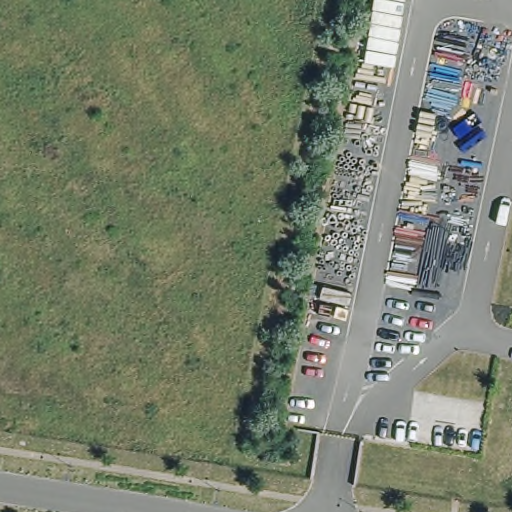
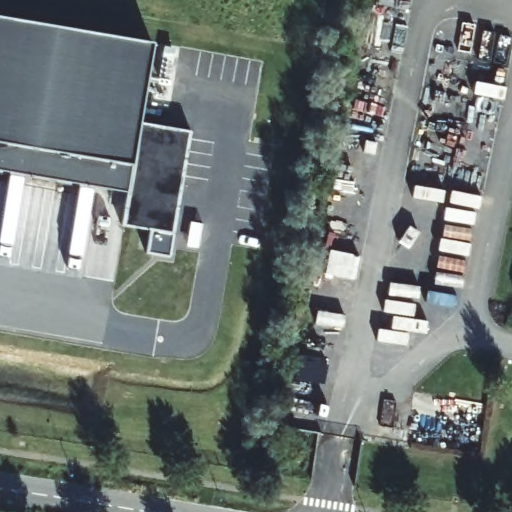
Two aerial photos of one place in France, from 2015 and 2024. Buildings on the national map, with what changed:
new [(138,122),(189,132),(172,232),(123,225),(129,191),(0,170),(0,17),(152,44),(138,122)]
new [(263,79),(283,81),(274,142),(255,139),(263,79)]

